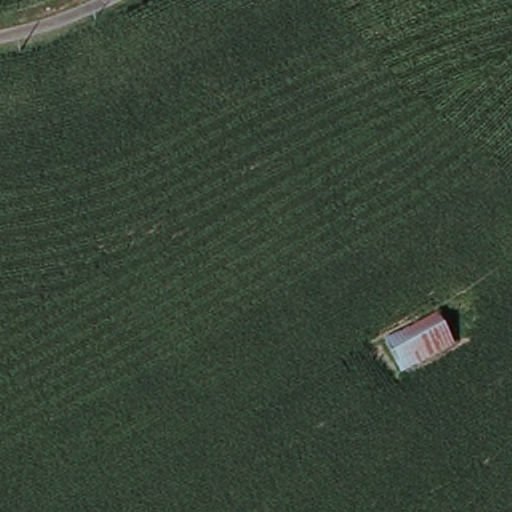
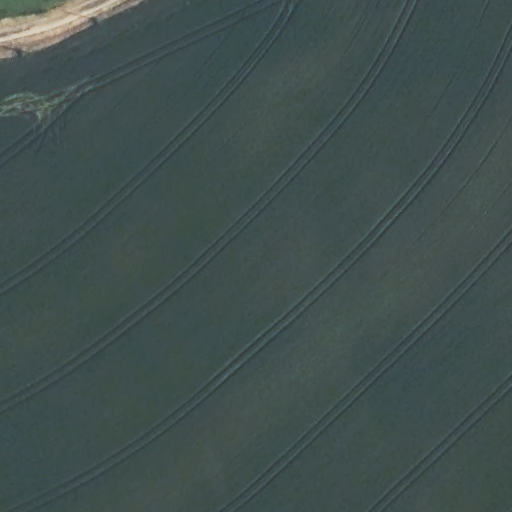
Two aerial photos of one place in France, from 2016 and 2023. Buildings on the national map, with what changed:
demolished [(438,316),(455,344),(427,360),(427,361),(427,362),(427,363),(427,364),(426,364),(426,365),(425,365),(425,364),(425,365),(424,365),(423,365),(422,365),(421,365),(420,365),(420,364),(404,373),(388,345),(438,316)]

